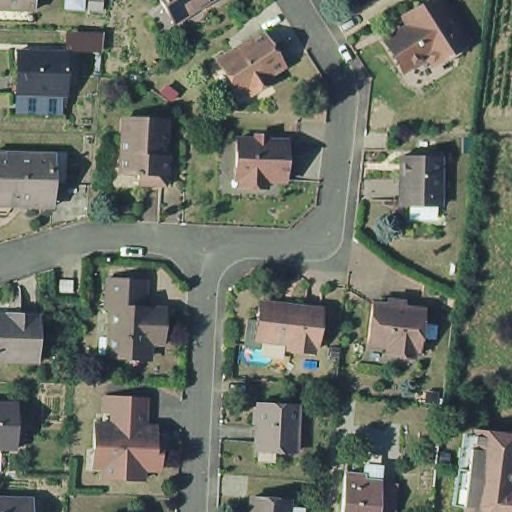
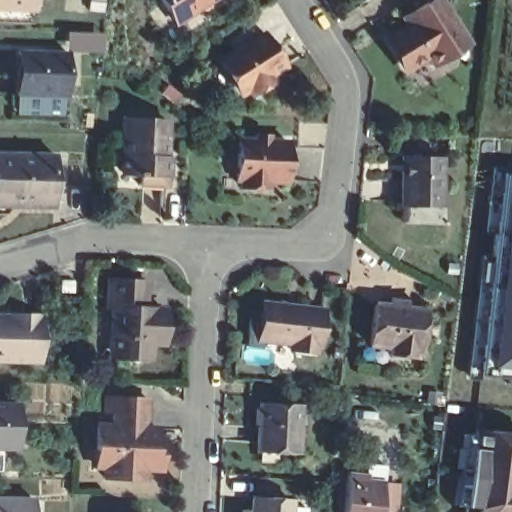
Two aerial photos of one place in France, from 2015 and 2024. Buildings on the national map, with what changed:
unchanged [(0,7),(0,0),(40,0),(40,7),(0,7)]
unchanged [(104,0),(103,9),(89,9),(90,0),(104,0)]
unchanged [(165,0),(212,0),(178,21),(165,0)]
unchanged [(401,14),(422,0),(443,0),(467,36),(431,61),(426,54),(408,66),(388,35),(407,23),(401,14)]
unchanged [(261,26),(285,61),(269,72),(273,79),(250,94),(245,87),(242,89),(218,54),(261,26)]
unchanged [(20,44),(72,46),(71,101),(17,100),(20,44)]
unchanged [(166,117),(166,154),(170,154),(170,182),(141,182),(141,174),(141,169),(122,169),(122,116),(166,117)]
unchanged [(245,134),(296,136),(295,176),(276,176),(275,184),(248,183),(248,178),(243,178),(245,134)]
unchanged [(58,200),(25,199),(25,190),(0,189),(0,146),(60,149),(58,200)]
unchanged [(405,152),(443,153),(443,197),(425,197),(425,202),(405,202),(405,152)]
new [(480,372),(500,173),(512,174),(512,375),(480,372)]
unchanged [(75,279),(75,292),(58,292),(58,278),(75,279)]
unchanged [(160,342),(147,341),(146,352),(130,366),(123,358),(110,357),(111,336),(106,335),(108,309),(105,309),(107,279),(136,281),(145,281),(145,309),(162,310),(160,342)]
unchanged [(247,342),(251,314),(267,317),(270,299),(327,307),(322,343),(316,342),(316,347),(291,344),(291,339),(264,337),(263,344),(247,342)]
unchanged [(381,299),(432,307),(427,348),(423,348),(422,354),(395,349),(395,344),(377,340),(381,299)]
unchanged [(12,305),(43,306),(43,309),(46,309),(43,357),(0,355),(0,310),(12,311),(12,305)]
unchanged [(101,446),(103,421),(117,422),(118,411),(110,411),(111,394),(118,394),(152,395),(152,423),(162,424),(162,434),(167,434),(167,445),(166,466),(150,465),(150,475),(109,474),(110,464),(101,463),(101,446)]
unchanged [(23,444),(0,444),(0,398),(23,398),(23,444)]
unchanged [(257,408),(298,411),(295,453),(254,449),(257,408)]
unchanged [(512,434),(512,512),(466,512),(467,506),(465,506),(471,448),(474,449),(476,429),(512,434)]
unchanged [(348,471),(367,472),(368,463),(385,464),(380,512),(346,512),(348,471)]
unchanged [(34,512),(0,512),(0,493),(34,494),(34,512)]
unchanged [(299,512),(232,512),(232,507),(242,508),(244,493),(285,497),(285,501),(300,502),(299,512)]

